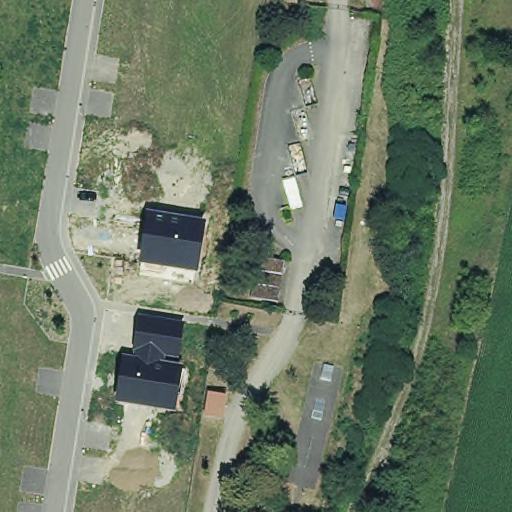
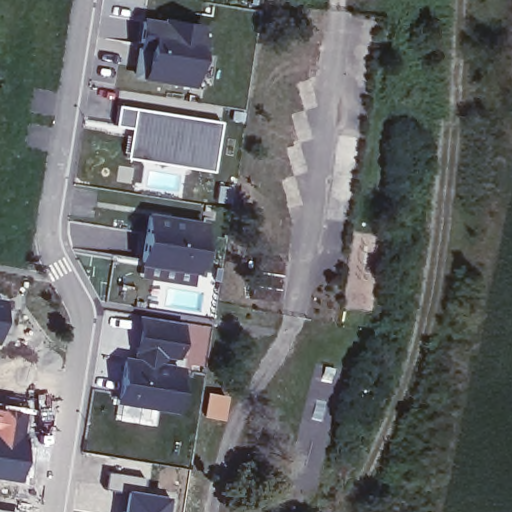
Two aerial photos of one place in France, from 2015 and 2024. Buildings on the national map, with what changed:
new [(140,79),(145,49),(134,48),(140,13),(204,23),(193,87),(140,79)]
new [(125,157),(130,127),(115,125),(118,105),(220,120),(212,171),(125,157)]
unchanged [(138,263),(145,211),(205,221),(197,272),(138,263)]
unchanged [(284,263),(278,302),(250,298),(256,258),(284,263)]
new [(0,310),(0,297),(2,297),(0,310)]
unchanged [(178,357),(167,356),(165,362),(182,365),(175,411),(114,401),(120,354),(132,356),(133,350),(130,350),(137,315),(183,323),(178,357)]
new [(205,390),(226,394),(220,419),(200,415),(205,390)]
new [(22,457),(0,453),(0,403),(28,407),(22,457)]
new [(17,481),(0,478),(0,453),(22,457),(17,481)]
new [(144,476),(142,489),(165,493),(163,512),(119,512),(122,490),(104,487),(107,470),(144,476)]
new [(17,512),(0,512),(0,508),(17,510),(17,512)]

